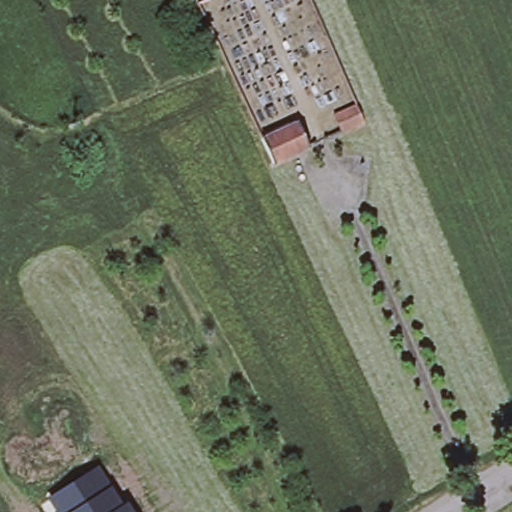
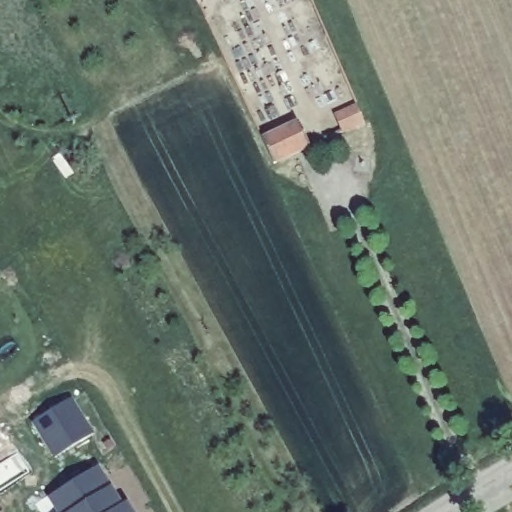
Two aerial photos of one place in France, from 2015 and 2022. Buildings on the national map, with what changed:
unchanged [(356,108),(362,123),(342,133),(335,117),(356,108)]
unchanged [(310,149),(275,166),(264,142),(300,125),(310,149)]
new [(72,398),(94,433),(54,457),(33,422),(72,398)]
unchanged [(98,467),(112,486),(125,505),(127,503),(133,512),(56,512),(48,499),(98,467)]

